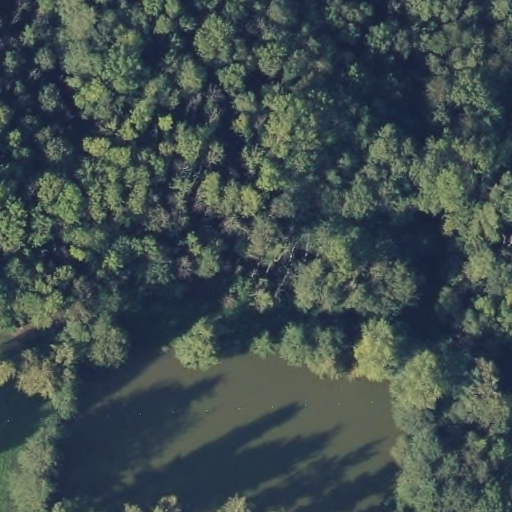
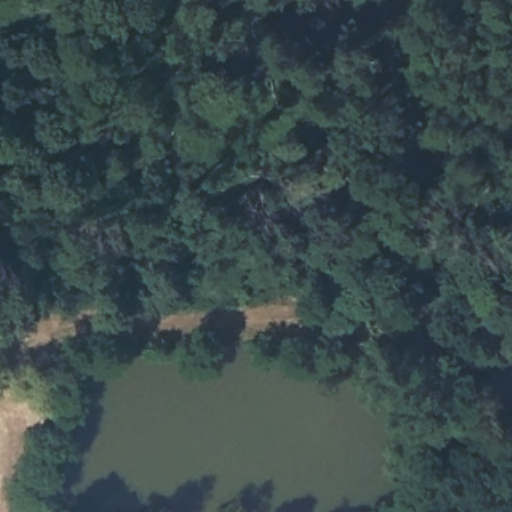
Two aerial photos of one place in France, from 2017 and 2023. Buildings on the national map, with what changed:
[]

